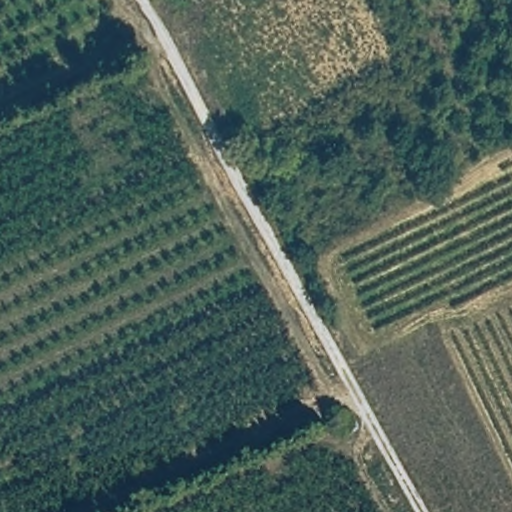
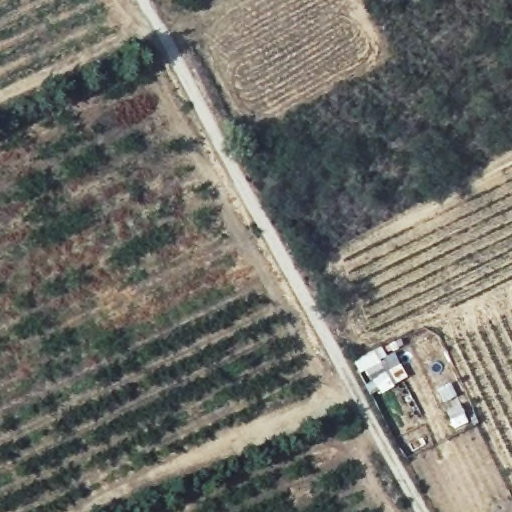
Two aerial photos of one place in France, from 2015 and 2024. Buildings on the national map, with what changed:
unchanged [(353,413),(361,430),(347,435),(336,417),(353,413)]

